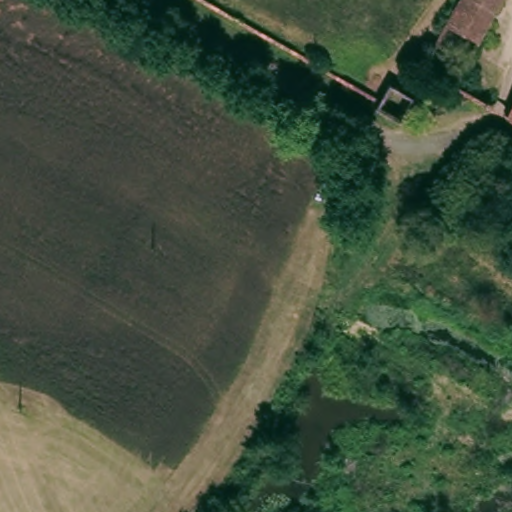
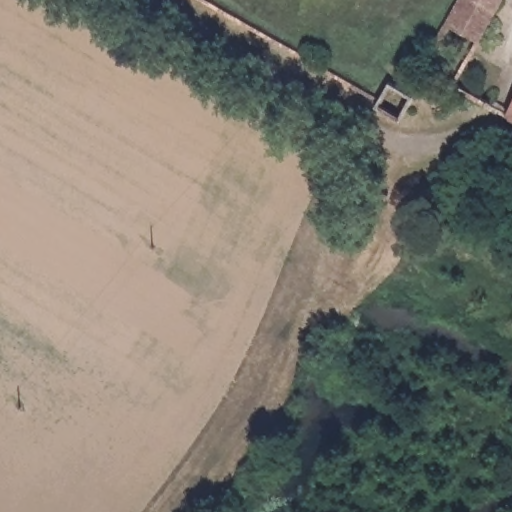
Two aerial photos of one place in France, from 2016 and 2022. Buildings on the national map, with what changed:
unchanged [(458,0),(504,0),(484,37),(447,18),(458,0)]
unchanged [(396,82),(417,95),(404,118),(381,101),(396,82)]
unchanged [(509,124),(502,120),(512,100),(512,125),(509,124)]

